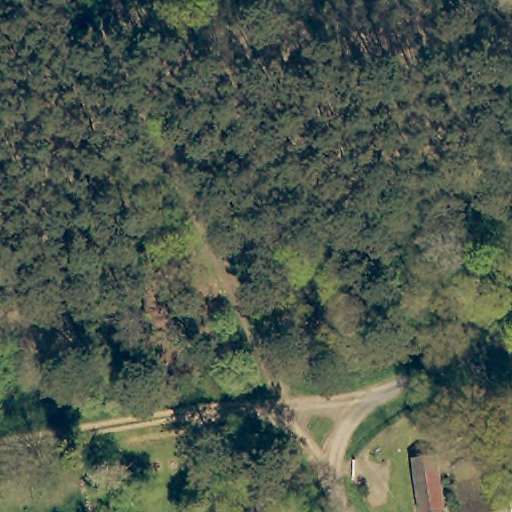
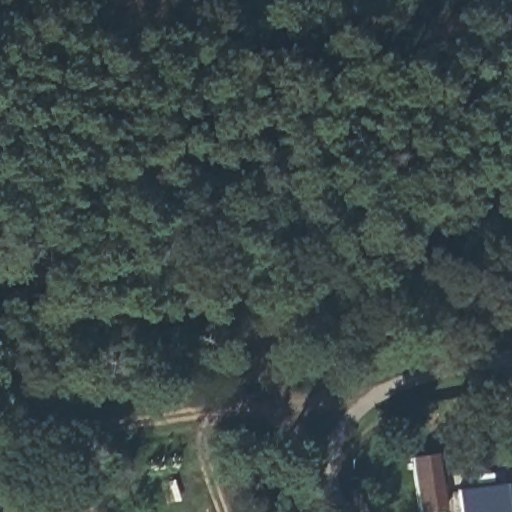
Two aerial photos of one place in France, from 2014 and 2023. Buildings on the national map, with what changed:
unchanged [(450,507),(424,510),(417,453),(443,450),(450,507)]
new [(461,512),(458,490),(506,483),(510,512),(461,512)]

